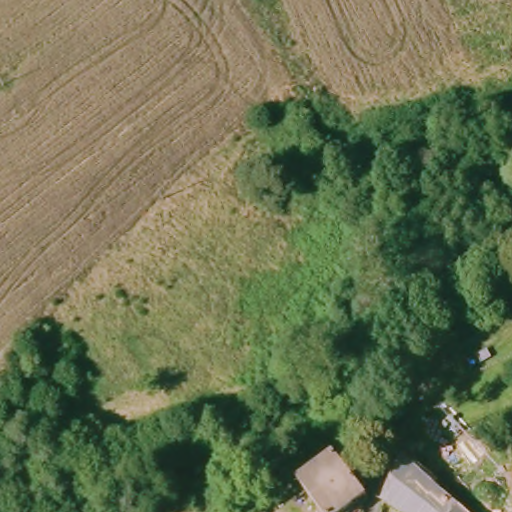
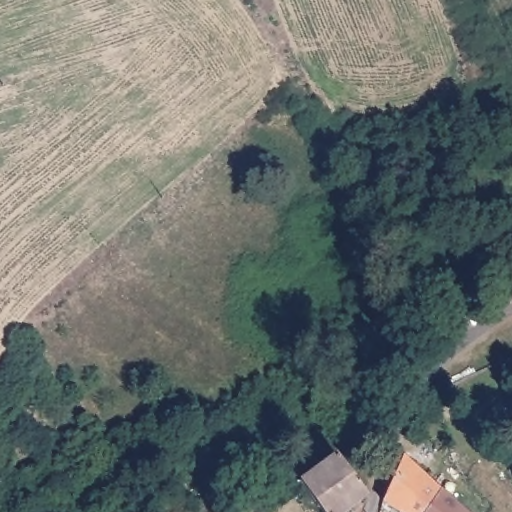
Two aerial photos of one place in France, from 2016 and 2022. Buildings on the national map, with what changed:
unchanged [(405,512),(387,498),(405,455),(468,512),(405,512)]
unchanged [(318,512),(295,485),(340,457),(373,498),(357,512),(318,512)]

